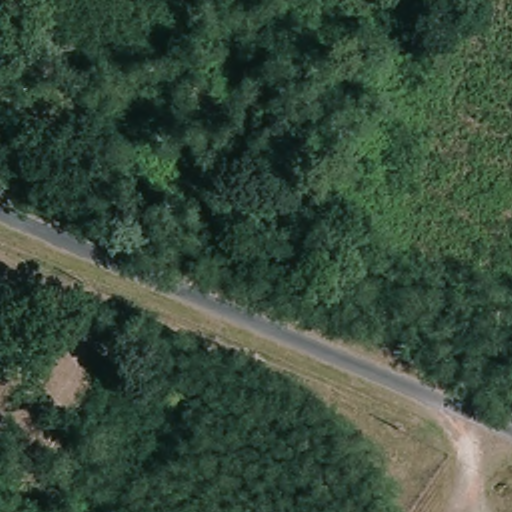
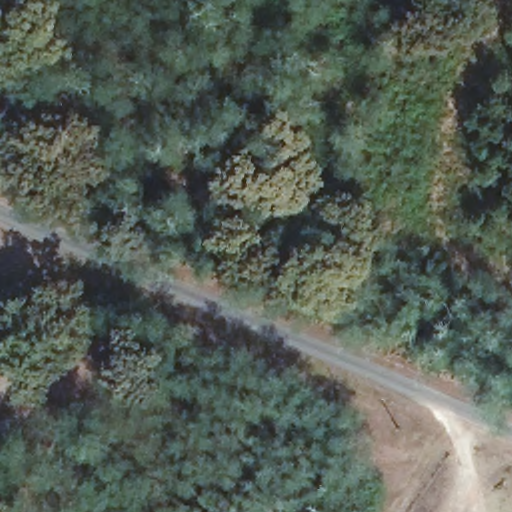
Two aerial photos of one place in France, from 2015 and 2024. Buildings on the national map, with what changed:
[]

